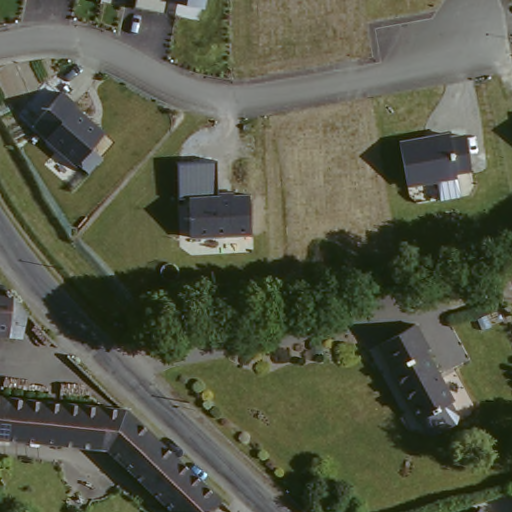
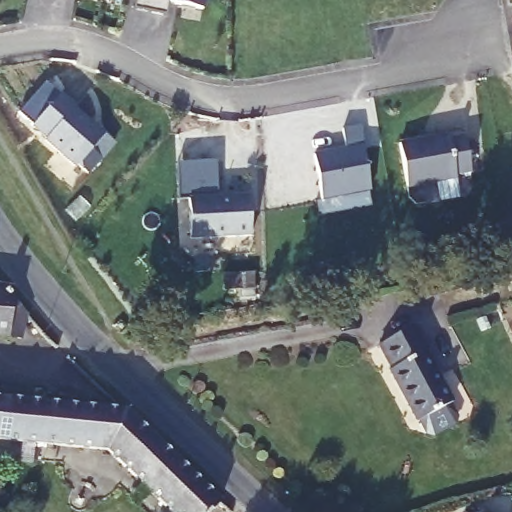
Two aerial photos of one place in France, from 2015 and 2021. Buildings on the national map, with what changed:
unchanged [(204,8),(166,1),(164,13),(134,7),(135,0),(206,0),(204,8)]
unchanged [(41,126),(29,115),(57,83),(72,97),(69,99),(99,125),(86,140),(96,149),(82,164),(73,155),(71,157),(39,128),(41,126)]
new [(360,126),(373,189),(323,199),(314,154),(347,147),(344,129),(360,126)]
unchanged [(444,131),(445,135),(463,134),(470,166),(456,168),(457,174),(410,183),(402,139),(444,131)]
unchanged [(216,162),(217,195),(249,195),(249,235),(189,236),(188,198),(177,199),(178,164),(216,162)]
unchanged [(0,334),(0,299),(9,299),(4,334),(0,334)]
unchanged [(382,362),(386,360),(373,336),(407,316),(422,342),(418,344),(446,394),(443,396),(443,397),(450,409),(448,416),(428,428),(420,426),(413,413),(411,414),(382,362)]
unchanged [(205,501),(208,503),(199,512),(179,512),(178,510),(176,512),(171,512),(164,505),(144,486),(105,447),(97,439),(71,438),(36,438),(26,438),(0,438),(0,398),(113,400),(206,488),(199,495),(205,501)]
unchanged [(492,512),(479,512),(486,505),(492,512)]

